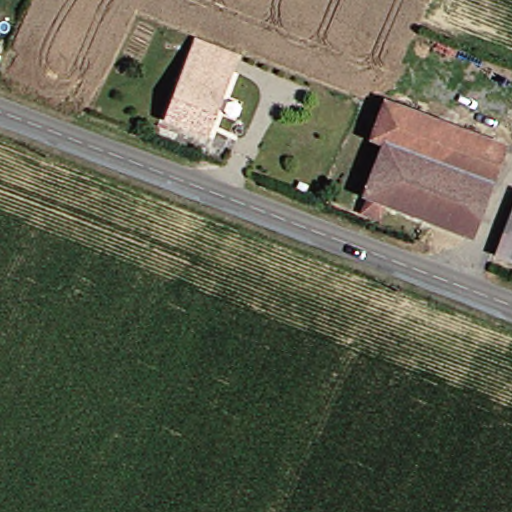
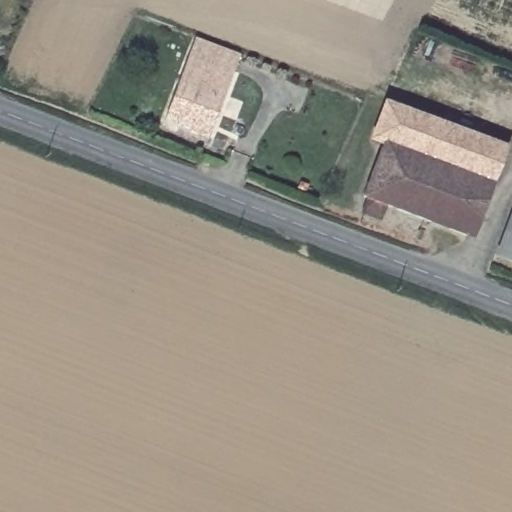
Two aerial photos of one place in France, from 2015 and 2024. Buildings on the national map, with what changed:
unchanged [(195,41),(200,43),(238,56),(237,56),(229,80),(186,65),(195,41)]
unchanged [(206,136),(164,121),(186,65),(229,80),(206,136)]
unchanged [(511,146),(499,178),(492,177),(470,234),(369,196),(389,144),(380,139),(397,104),(511,146)]
unchanged [(496,255),(512,214),(512,262),(496,255)]

